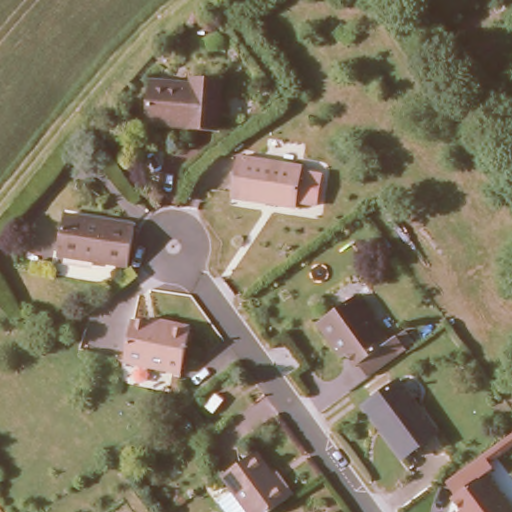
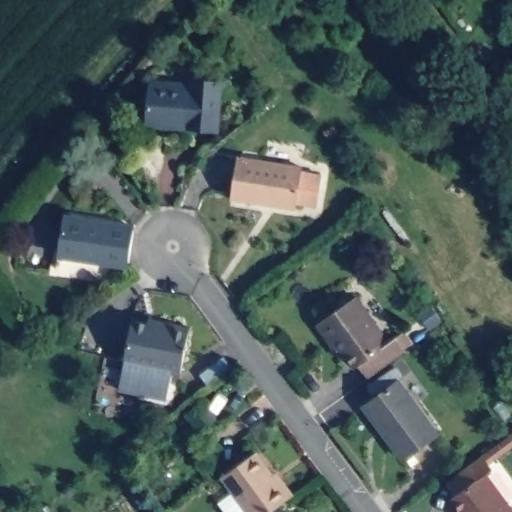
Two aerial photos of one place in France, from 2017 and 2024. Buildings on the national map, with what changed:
unchanged [(152,87),(192,90),(192,85),(220,86),(217,134),(147,129),(152,87)]
unchanged [(310,209),(295,206),(295,212),(231,203),(238,161),(302,171),(301,175),(315,178),(310,209)]
unchanged [(57,251),(65,210),(89,214),(89,217),(100,219),(102,216),(134,221),(127,261),(57,251)]
unchanged [(360,367),(352,355),(347,358),(342,351),(322,324),(361,296),(395,342),(401,337),(411,350),(385,369),(374,377),(365,365),(360,367)]
unchanged [(149,324),(150,318),(157,320),(190,327),(180,373),(124,362),(133,322),(149,324)]
unchanged [(398,386),(437,438),(403,463),(365,411),(398,386)]
unchanged [(234,486),(222,470),(255,447),(272,470),(275,467),(292,490),(289,493),(263,512),(229,512),(219,497),(234,486)]
unchanged [(452,493),(455,491),(445,478),(457,469),(465,463),(483,450),(492,463),(485,468),(512,504),(512,512),(457,512),(455,510),(460,506),(452,493)]

